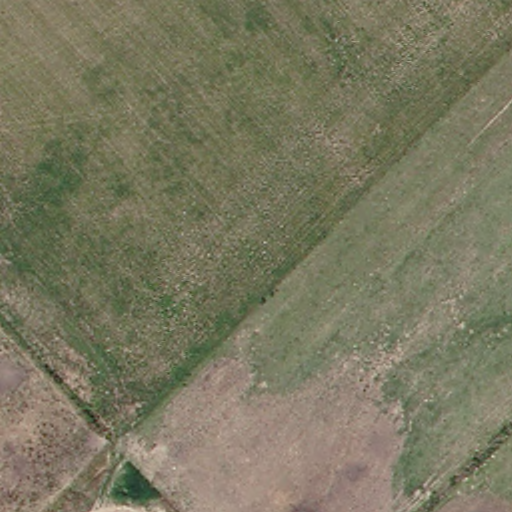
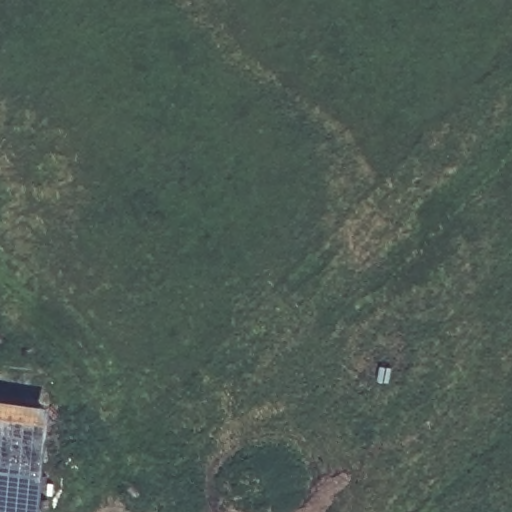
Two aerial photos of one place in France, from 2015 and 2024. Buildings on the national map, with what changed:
new [(42,512),(0,512),(0,398),(56,406),(42,512)]

